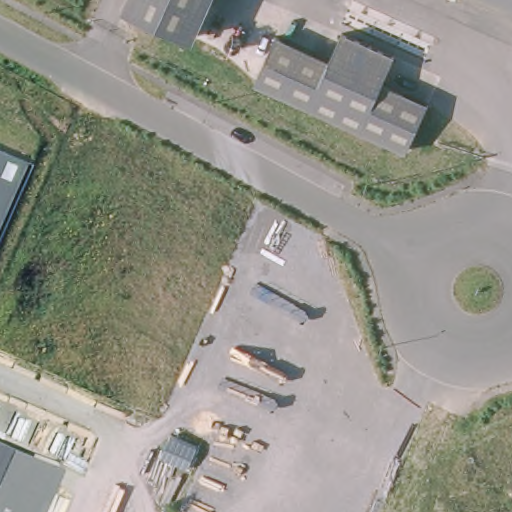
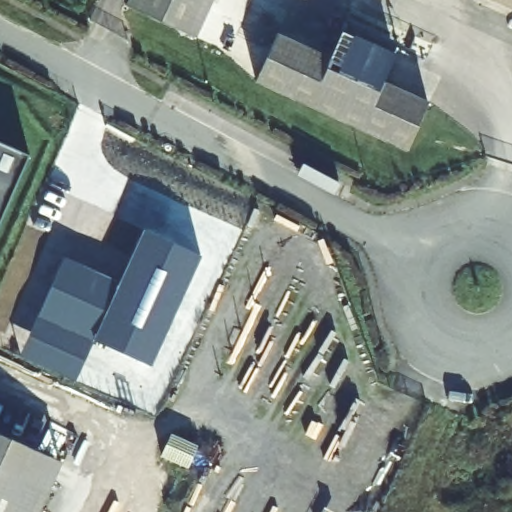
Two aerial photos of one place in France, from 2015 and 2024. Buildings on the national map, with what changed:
unchanged [(203,0),(189,31),(122,1),(122,0),(203,0)]
unchanged [(512,0),(512,7),(497,0),(512,0)]
unchanged [(322,65),(325,58),(330,59),(342,31),(393,54),(380,82),(427,104),(406,149),(305,103),(322,65)]
unchanged [(322,65),(305,103),(253,80),(273,34),(325,58),(322,65)]
unchanged [(29,155),(0,221),(0,142),(29,155)]
new [(143,229),(202,256),(151,366),(93,339),(75,381),(20,356),(65,256),(120,282),(143,229)]
unchanged [(62,464),(40,512),(0,512),(0,441),(62,464)]

